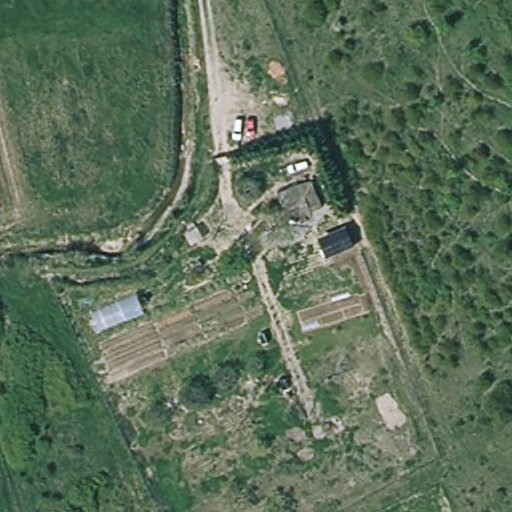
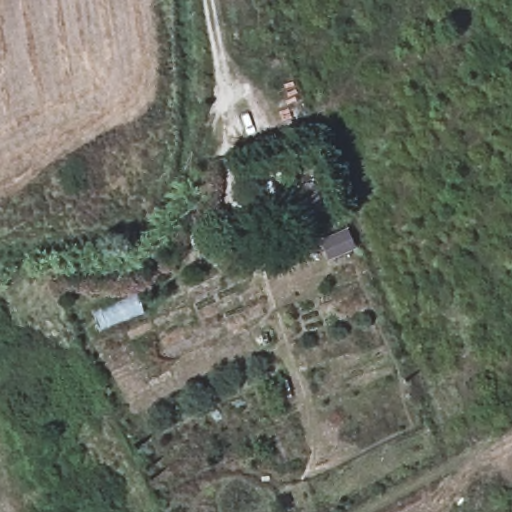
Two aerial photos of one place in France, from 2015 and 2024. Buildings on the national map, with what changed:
unchanged [(282,202),(294,197),(291,187),(312,180),(324,209),(290,221),(282,202)]

